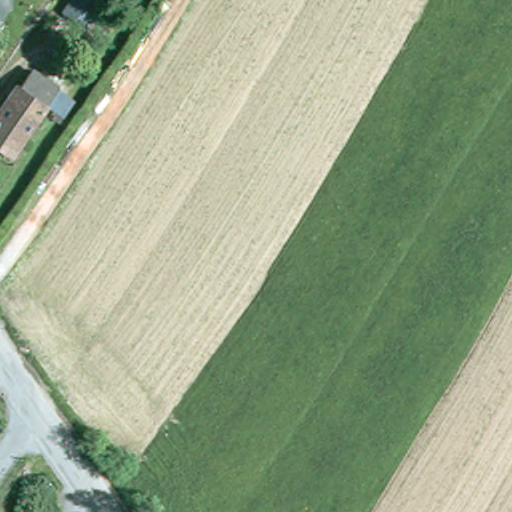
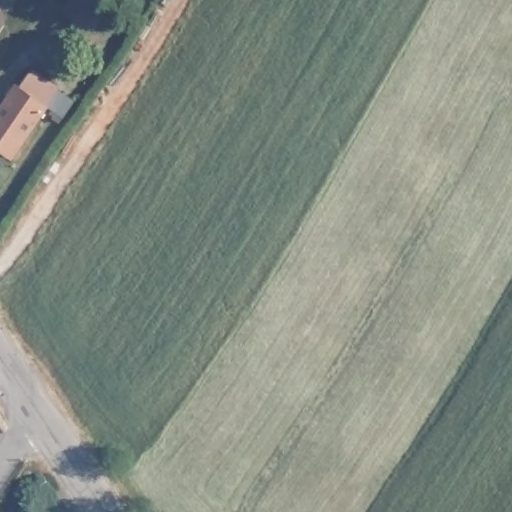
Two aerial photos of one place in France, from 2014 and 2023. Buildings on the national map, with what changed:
unchanged [(69,0),(97,0),(109,9),(103,17),(95,12),(84,27),(62,10),(69,0)]
unchanged [(58,65),(66,71),(11,150),(0,142),(0,103),(16,81),(20,83),(32,66),(50,77),(58,65)]

